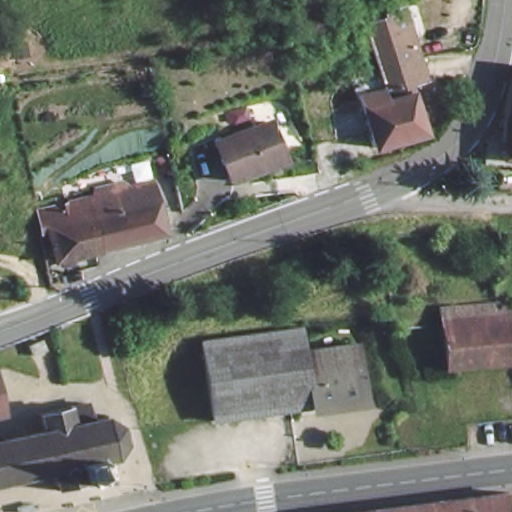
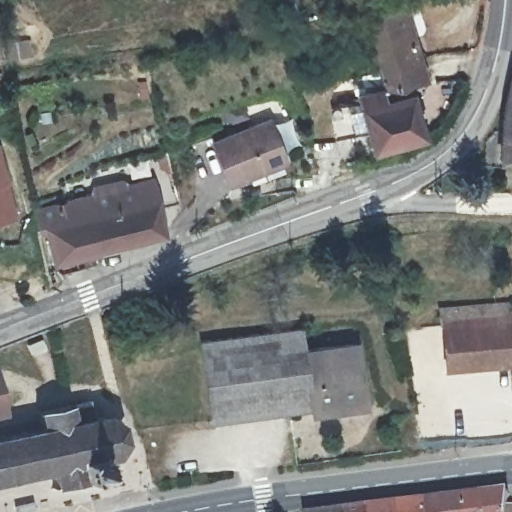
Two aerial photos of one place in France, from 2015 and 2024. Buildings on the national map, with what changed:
unchanged [(339,145),(338,135),(336,114),(352,110),(364,107),(363,99),(370,98),(365,81),(382,76),(369,31),(369,29),(392,24),(392,19),(412,15),(423,62),(428,83),(429,83),(426,84),(413,89),(425,136),(400,143),(376,150),(371,138),(339,145)]
unchanged [(2,53),(0,53),(0,46),(2,53)]
unchanged [(512,96),(512,172),(501,170),(507,121),(511,103),(512,96)]
unchanged [(272,116),(285,153),(230,175),(215,137),(272,116)]
new [(15,217),(0,219),(0,152),(15,217)]
unchanged [(102,243),(94,245),(94,242),(89,225),(80,227),(71,218),(71,217),(57,221),(51,202),(56,201),(67,199),(73,197),(74,197),(93,193),(94,193),(132,184),(135,183),(152,179),(159,178),(161,188),(164,209),(167,227),(102,243)]
unchanged [(36,206),(51,202),(57,221),(71,217),(71,218),(80,227),(89,225),(94,242),(94,245),(58,254),(48,225),(41,226),(36,206)]
unchanged [(444,323),(444,310),(444,307),(475,305),(507,302),(509,316),(510,323),(512,355),(512,361),(448,365),(444,323)]
unchanged [(304,323),(307,346),(359,341),(368,402),(333,408),(331,400),(216,415),(203,336),(304,323)]
unchanged [(3,384),(7,412),(0,414),(0,370),(3,384)]
unchanged [(44,424),(40,407),(89,398),(93,414),(105,412),(119,421),(122,437),(115,450),(100,453),(103,471),(57,482),(52,464),(0,475),(0,434),(44,424)]
unchanged [(350,511),(371,508),(388,506),(424,502),(465,497),(477,495),(509,490),(510,490),(509,505),(512,506),(512,512),(343,512),(350,511)]

